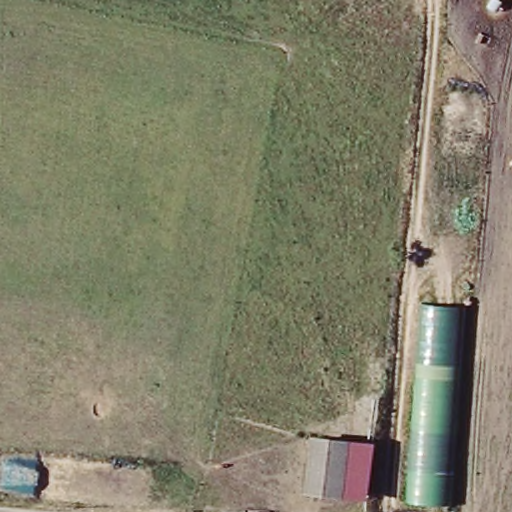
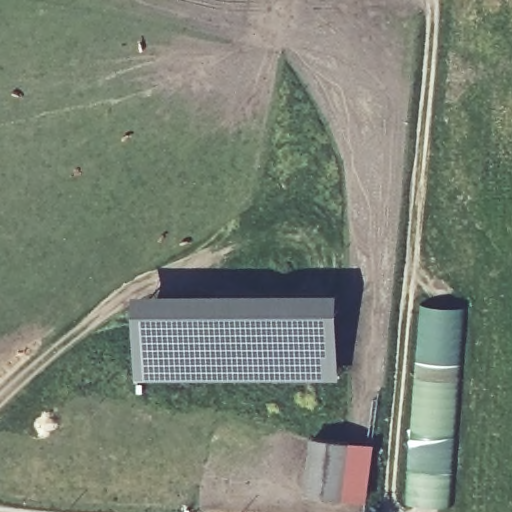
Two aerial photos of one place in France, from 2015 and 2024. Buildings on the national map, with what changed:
new [(340,378),(135,378),(135,294),(338,291),(340,378)]
unchanged [(413,499),(430,301),(467,304),(455,500),(413,499)]
unchanged [(341,492),(310,489),(316,437),(347,441),(341,492)]
unchanged [(369,496),(341,492),(347,441),(375,443),(369,496)]

